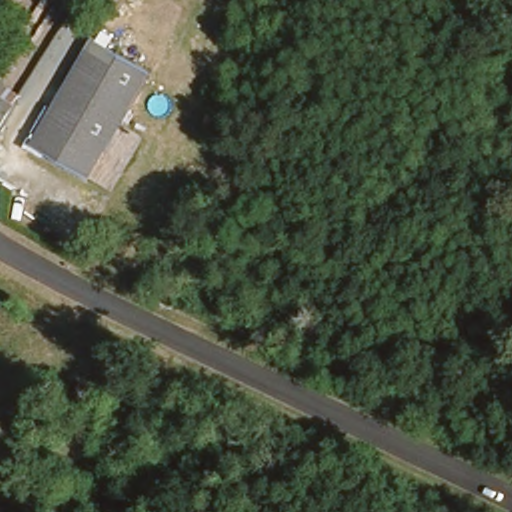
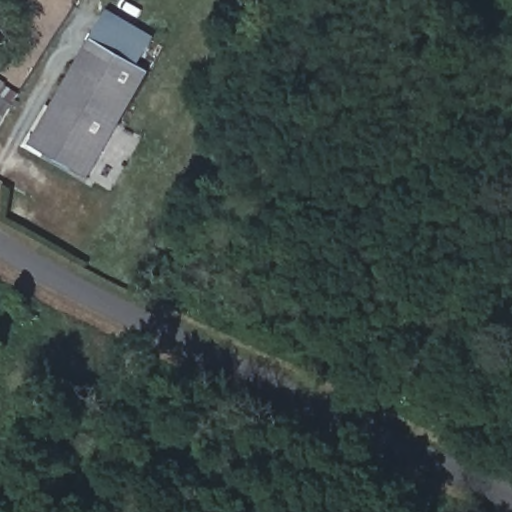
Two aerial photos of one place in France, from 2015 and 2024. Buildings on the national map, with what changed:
new [(107,6),(156,34),(140,61),(91,34),(107,6)]
unchanged [(69,74),(91,34),(140,61),(150,66),(110,142),(92,174),(33,142),(69,74)]
unchanged [(13,101),(0,125),(0,93),(13,101)]

